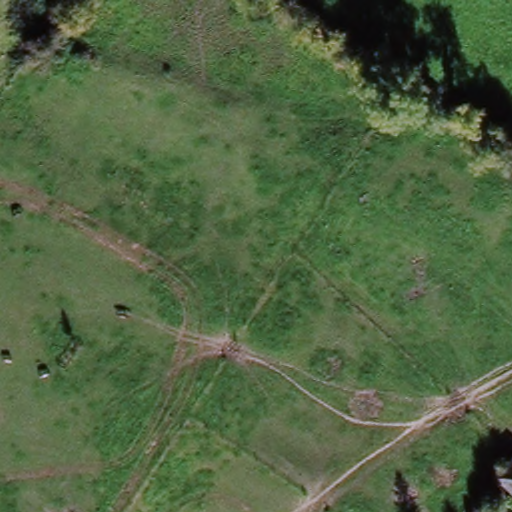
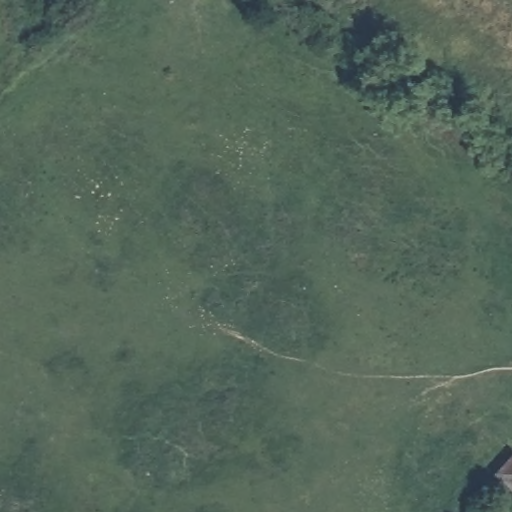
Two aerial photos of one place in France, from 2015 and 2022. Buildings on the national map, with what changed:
unchanged [(512,457),(512,496),(492,478),(512,457)]

